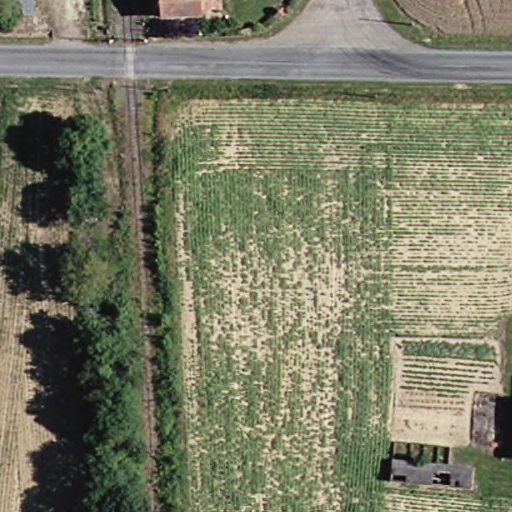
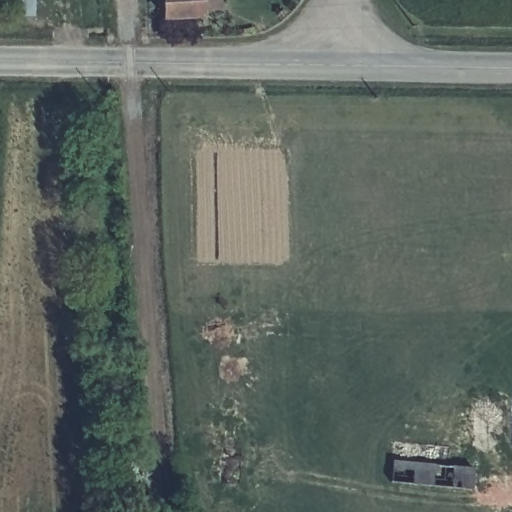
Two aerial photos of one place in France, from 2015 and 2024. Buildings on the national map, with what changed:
unchanged [(201,7),(197,15),(161,17),(161,0),(219,0),(220,7),(201,7)]
unchanged [(462,464),(480,465),(478,487),(400,483),(401,461),(462,464)]

